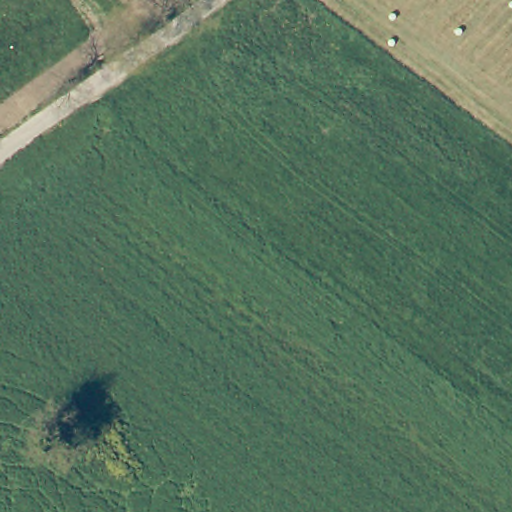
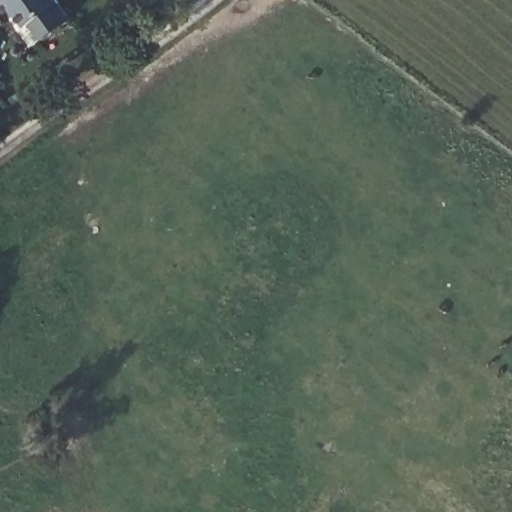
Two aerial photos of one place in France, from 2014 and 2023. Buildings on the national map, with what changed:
new [(32,25),(27,29),(5,0),(59,0),(57,1),(70,18),(45,41),(32,25)]

